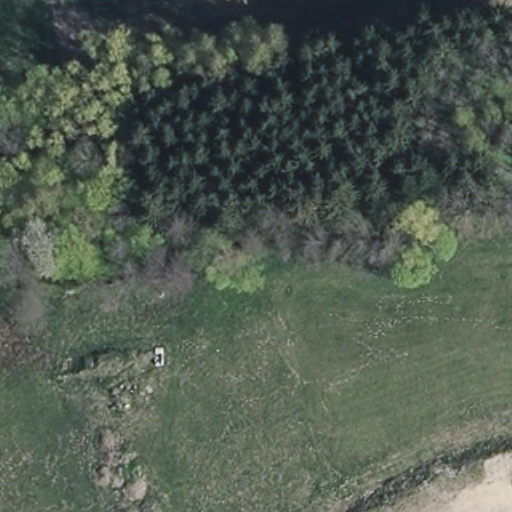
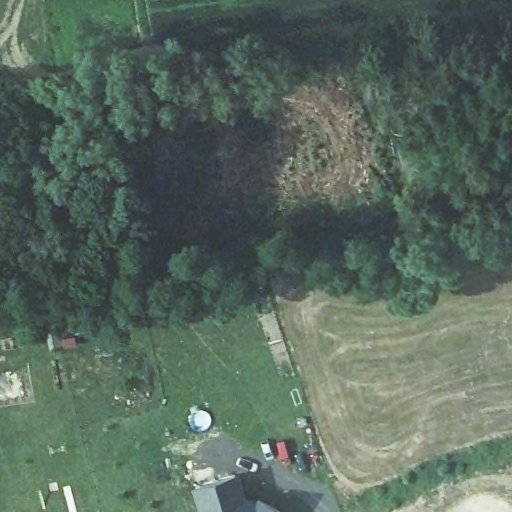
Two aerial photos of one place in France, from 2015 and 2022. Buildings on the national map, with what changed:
new [(241,497),(255,505),(260,498),(283,512),(202,512),(194,485),(235,473),(241,497)]

